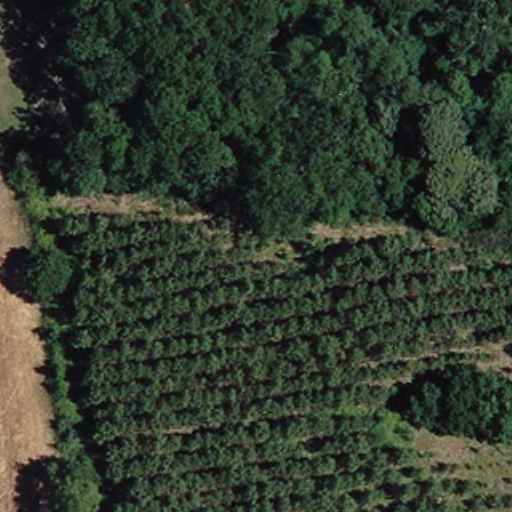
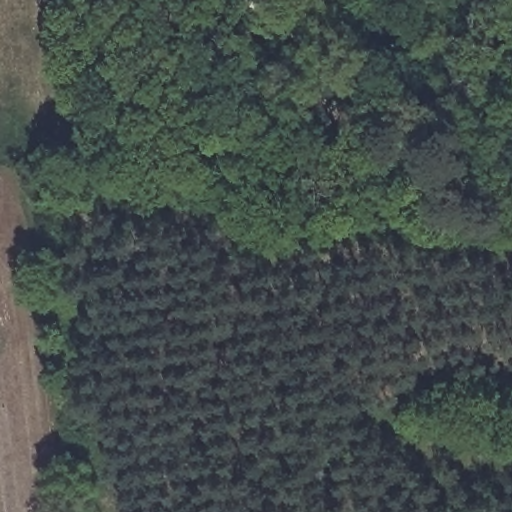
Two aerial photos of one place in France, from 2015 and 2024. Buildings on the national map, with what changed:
[]

